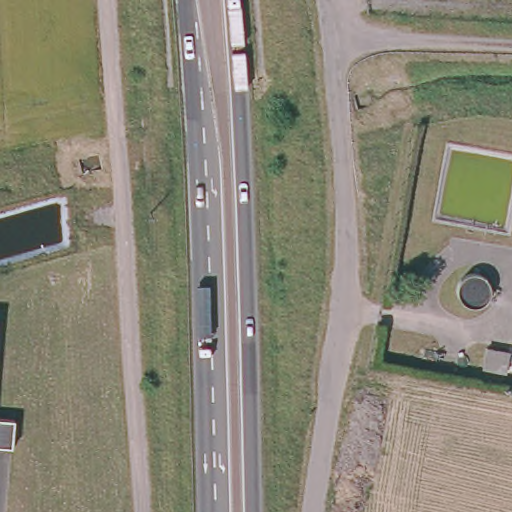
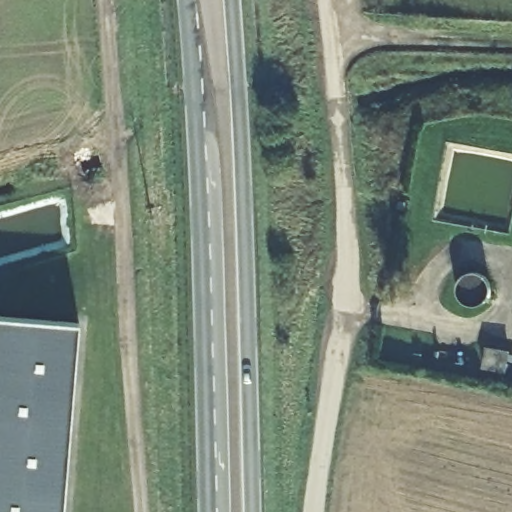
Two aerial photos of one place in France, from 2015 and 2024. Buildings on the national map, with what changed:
new [(63,512),(0,512),(0,446),(10,446),(13,420),(0,418),(0,317),(79,324),(63,512)]
unchanged [(484,348),(512,353),(512,356),(508,377),(479,370),(484,348)]
unchanged [(10,446),(0,446),(0,418),(13,420),(10,446)]

